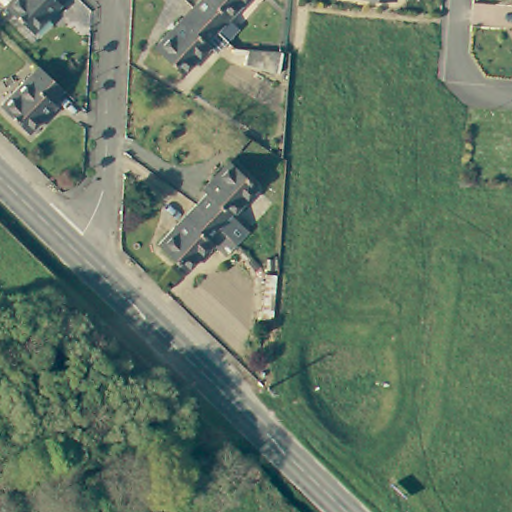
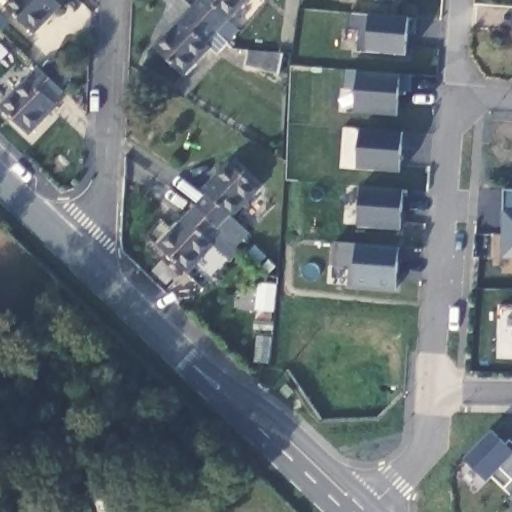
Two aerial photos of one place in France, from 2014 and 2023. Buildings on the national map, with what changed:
unchanged [(65,10),(70,15),(42,42),(7,7),(7,0),(76,0),(65,10)]
unchanged [(189,12),(200,1),(199,0),(246,0),(224,23),(234,33),(224,46),(189,12)]
unchanged [(213,58),(205,51),(179,79),(150,52),(189,12),(224,46),(213,58)]
new [(416,31),(410,30),(406,55),(369,51),(360,50),(361,30),(350,28),(351,12),(370,13),(410,17),(416,18),(416,31)]
unchanged [(284,69),(247,66),(248,50),(283,53),(284,69)]
unchanged [(64,90),(52,101),(57,106),(30,134),(1,107),(40,67),(64,90)]
new [(411,90),(402,88),(398,115),(355,113),(360,89),(345,89),(346,69),(402,74),(412,74),(411,90)]
new [(400,171),(355,168),(361,128),(404,131),(400,171)]
unchanged [(194,215),(206,200),(201,196),(225,165),(256,190),(232,219),(250,233),(239,247),(236,249),(194,215)]
new [(401,229),(358,226),(361,187),(405,190),(401,229)]
new [(505,189),(512,189),(512,258),(503,258),(505,189)]
unchanged [(227,262),(214,251),(190,282),(160,257),(194,215),(236,249),(227,262)]
new [(396,291),(350,285),(350,266),(335,264),(335,242),(357,243),(400,247),(396,291)]
unchanged [(260,358),(263,319),(267,276),(277,276),(273,320),(270,359),(260,358)]
new [(511,493),(494,475),(488,481),(465,458),(492,429),(504,440),(511,438),(512,440),(512,505),(506,500),(511,493)]

